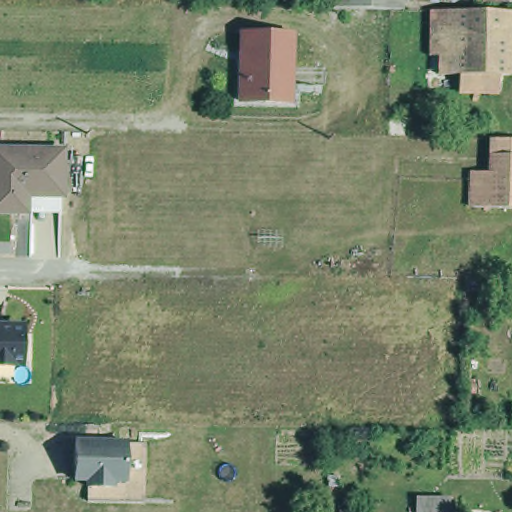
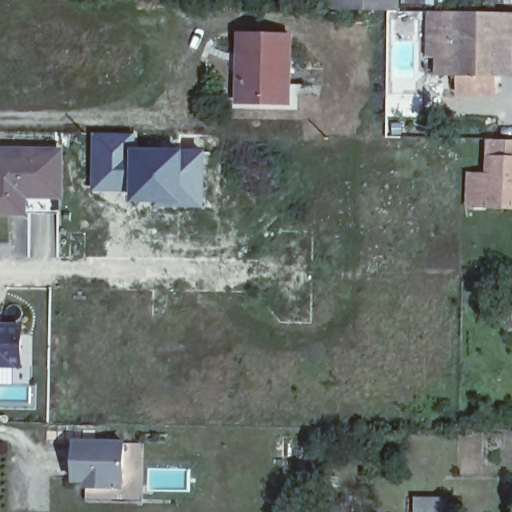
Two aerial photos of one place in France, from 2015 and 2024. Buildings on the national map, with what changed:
unchanged [(462,79),(432,79),(432,64),(434,4),(461,4),(505,5),(505,1),(512,2),(512,22),(505,21),(505,65),(500,65),(500,84),(462,83),(462,79)]
unchanged [(283,81),(283,99),(260,99),(260,94),(237,93),(237,60),(240,60),(240,49),(237,49),(238,30),(289,30),(287,81),(283,81)]
unchanged [(472,166),(490,166),(491,146),(491,130),(512,130),(512,202),(490,202),(472,200),(472,175),(472,166)]
new [(91,131),(135,132),(135,146),(127,145),(127,191),(89,191),(91,131)]
unchanged [(27,205),(15,204),(0,204),(0,142),(64,142),(63,188),(60,187),(60,194),(32,194),(32,205),(27,205)]
new [(127,145),(135,146),(205,149),(202,208),(130,202),(130,191),(127,191),(127,145)]
unchanged [(0,365),(0,325),(20,325),(20,365),(0,365)]
unchanged [(125,443),(124,481),(110,480),(110,488),(87,488),(87,480),(73,480),(74,442),(125,443)]
unchanged [(417,497),(449,497),(449,512),(417,512),(417,497)]

